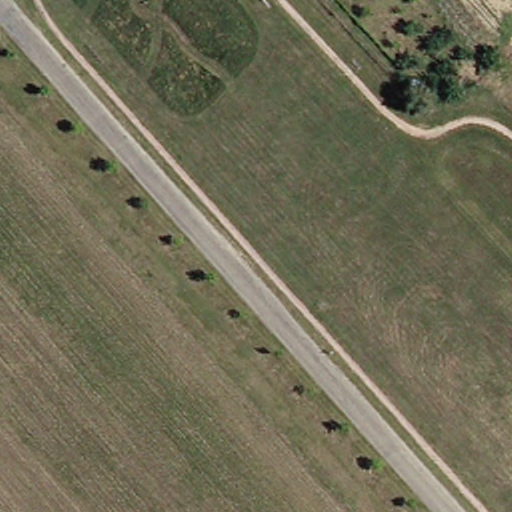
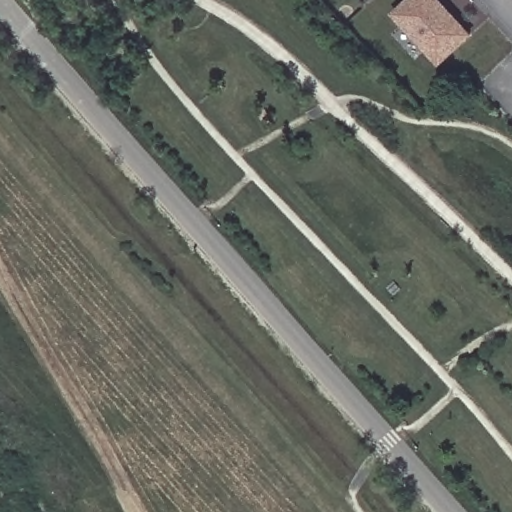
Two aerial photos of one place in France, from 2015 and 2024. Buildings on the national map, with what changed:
new [(409,0),(434,0),(468,37),(437,66),(392,17),(409,0)]

